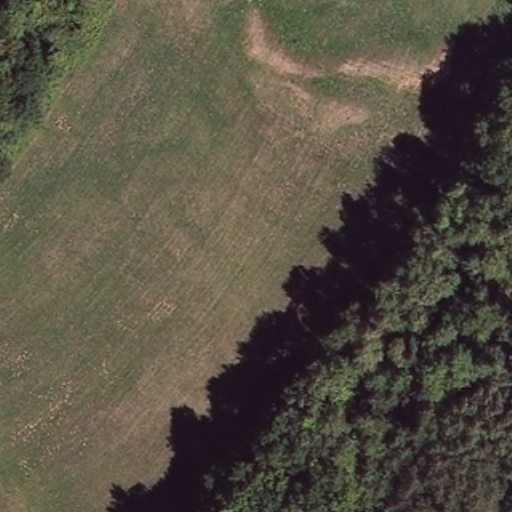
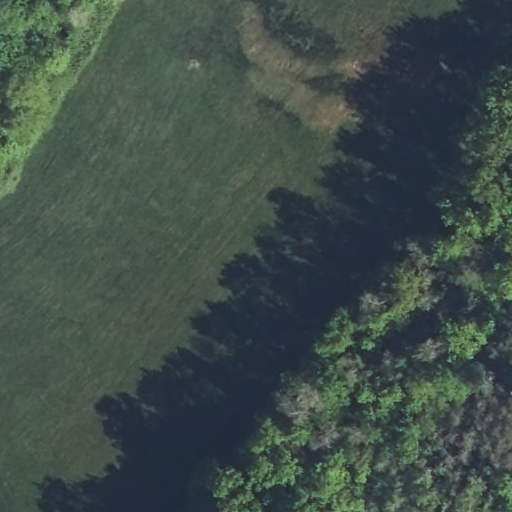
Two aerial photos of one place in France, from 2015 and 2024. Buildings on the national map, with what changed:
[]

